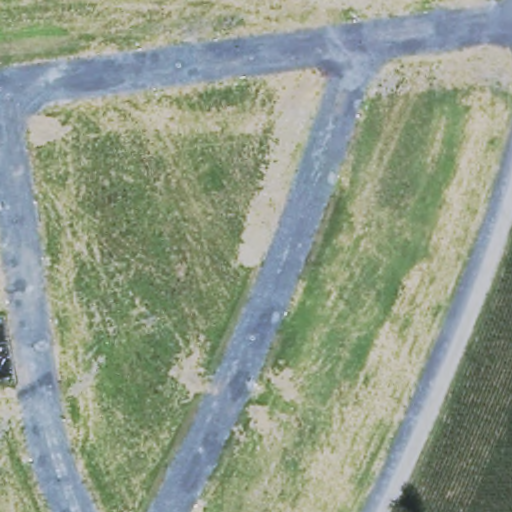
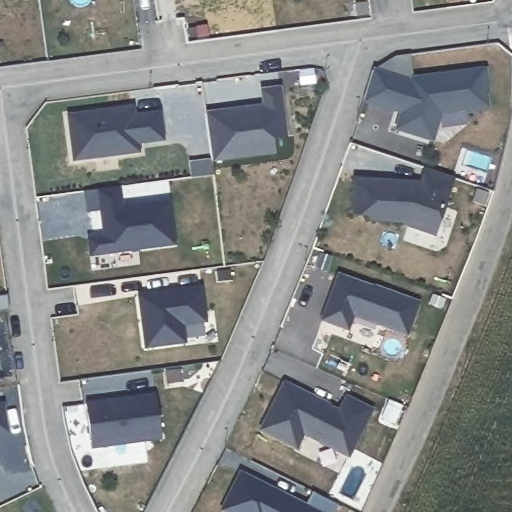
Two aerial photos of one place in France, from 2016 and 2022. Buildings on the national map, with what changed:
new [(370,76),(373,70),(381,62),(391,57),(409,55),(412,80),(484,70),(487,91),(485,92),(486,110),(467,112),(466,110),(445,115),(436,142),(403,132),(410,109),(403,106),(401,113),(362,101),(370,76)]
new [(264,107),(262,91),(280,89),(286,137),(243,143),(245,157),(211,161),(205,115),(264,107)]
new [(132,108),(134,117),(159,114),(163,140),(137,144),(139,152),(74,160),(68,116),(132,108)]
new [(353,180),(400,183),(400,188),(406,188),(415,184),(420,185),(426,169),(453,178),(434,235),(407,226),(405,223),(368,221),(368,216),(351,215),(353,180)]
new [(99,211),(86,214),(84,192),(118,187),(120,207),(168,201),(174,245),(105,255),(89,256),(87,240),(102,237),(99,211)]
new [(338,277),(373,290),(374,288),(417,303),(405,335),(352,315),(350,320),(337,326),(322,320),(338,277)]
new [(165,292),(199,288),(204,322),(180,325),(183,343),(143,348),(136,296),(159,293),(165,292)]
new [(6,295),(9,311),(0,313),(0,296),(6,295)]
new [(284,387),(331,408),(330,410),(340,415),(346,399),(372,410),(352,456),(305,436),(299,450),(263,435),(284,387)]
new [(128,399),(155,395),(161,439),(91,448),(85,405),(113,401),(128,399)]
new [(2,405),(6,432),(0,433),(0,405),(2,405)]

